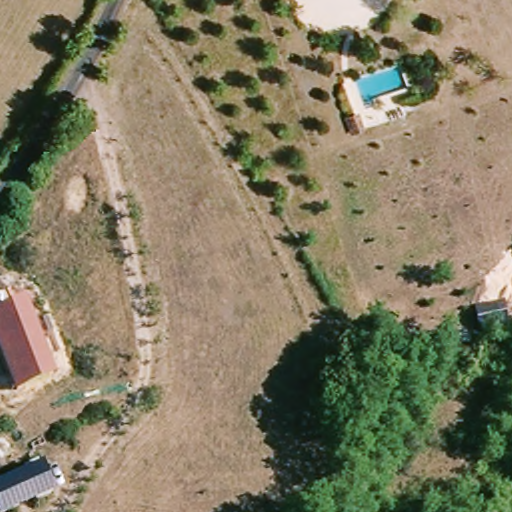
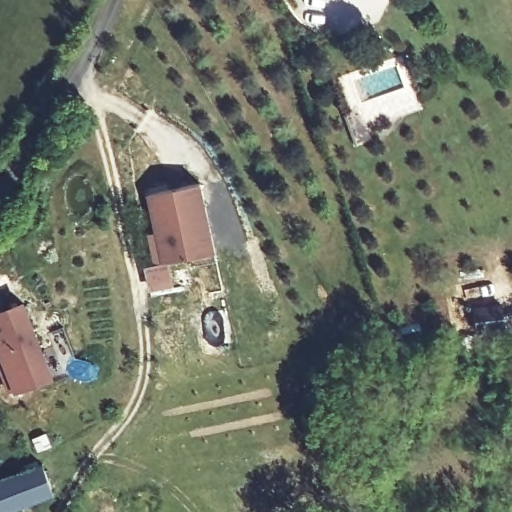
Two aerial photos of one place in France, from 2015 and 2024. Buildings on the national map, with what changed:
new [(218,252),(154,265),(148,234),(153,233),(147,195),(202,183),(218,252)]
unchanged [(56,375),(15,392),(0,354),(0,309),(26,299),(56,375)]
unchanged [(11,512),(0,512),(0,485),(51,465),(63,492),(11,512)]

